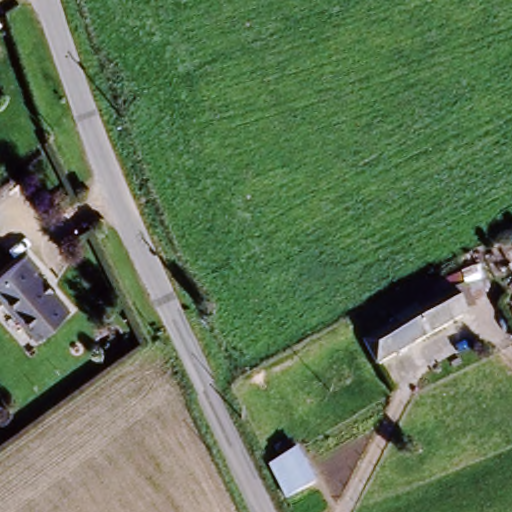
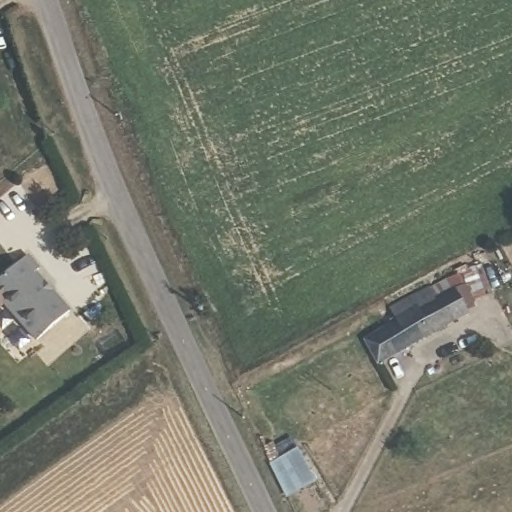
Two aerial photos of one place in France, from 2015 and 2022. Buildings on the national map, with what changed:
unchanged [(0,283),(27,258),(42,272),(40,277),(69,314),(39,342),(0,298),(0,283)]
unchanged [(369,331),(399,315),(393,305),(439,281),(447,292),(472,280),(485,303),(462,315),(383,357),(369,331)]
unchanged [(267,458),(277,454),(273,446),(294,437),(315,482),(293,492),(291,486),(282,490),(267,458)]

